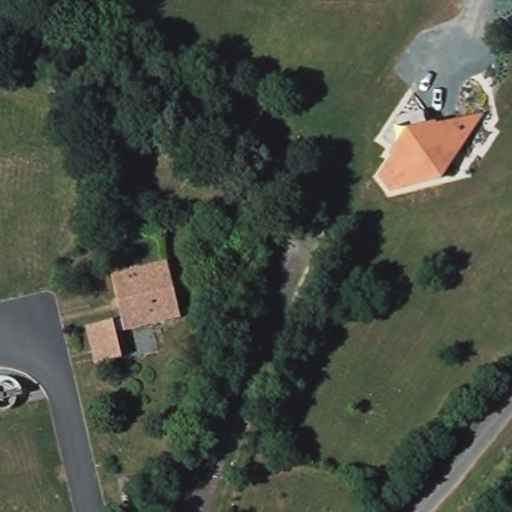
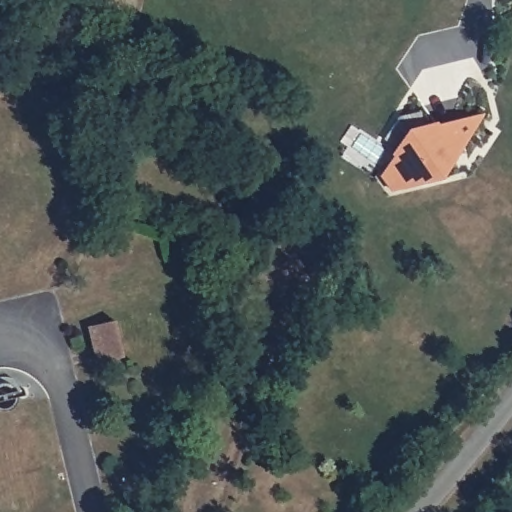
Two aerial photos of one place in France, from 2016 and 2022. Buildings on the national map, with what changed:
unchanged [(384,173),(414,129),(486,113),(444,176),(397,188),(384,173)]
demolished [(116,277),(173,262),(187,317),(130,332),(116,277)]
unchanged [(341,310),(355,279),(367,284),(354,315),(341,310)]
unchanged [(92,326),(119,320),(127,355),(100,361),(92,326)]
unchanged [(8,373),(9,372),(10,372),(10,371),(11,371),(12,371),(13,370),(14,370),(15,370),(16,369),(17,369),(18,369),(19,369),(19,370),(20,370),(21,370),(22,370),(23,371),(24,372),(25,372),(25,373),(26,373),(27,374),(27,375),(28,375),(28,376),(28,377),(29,378),(29,379),(29,380),(29,381),(29,382),(29,383),(29,384),(29,385),(29,386),(28,387),(28,388),(27,389),(27,390),(26,390),(25,391),(24,392),(23,392),(22,393),(21,393),(20,394),(19,394),(18,394),(17,394),(16,394),(15,394),(14,394),(13,393),(12,393),(11,392),(10,392),(10,391),(9,391),(8,390),(8,389),(7,389),(7,388),(6,387),(6,386),(5,385),(5,384),(5,383),(5,382),(5,381),(5,380),(5,379),(5,378),(6,377),(6,376),(7,375),(7,374),(8,374),(8,373)]

